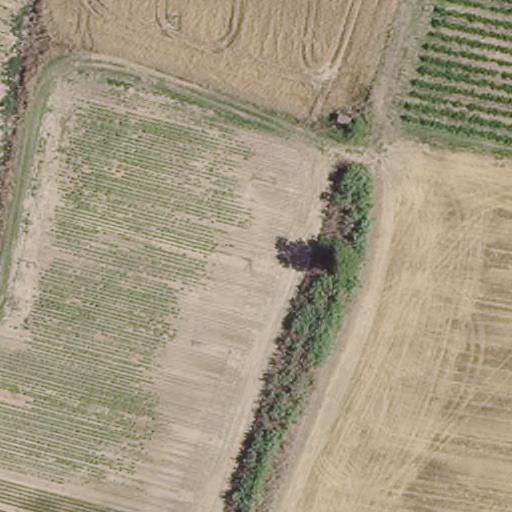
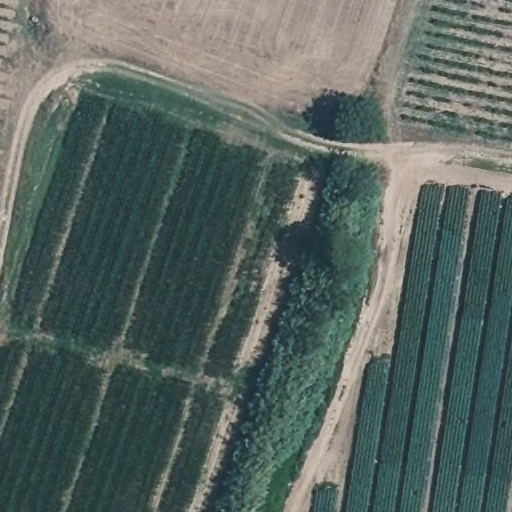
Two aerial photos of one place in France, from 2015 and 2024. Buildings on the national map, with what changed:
unchanged [(348,124),(336,121),(338,114),(350,117),(348,124)]

